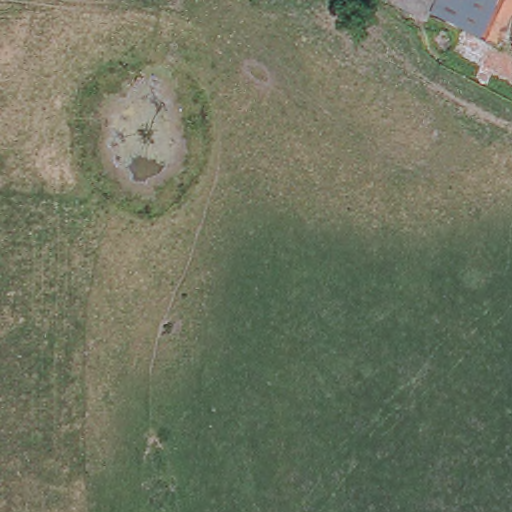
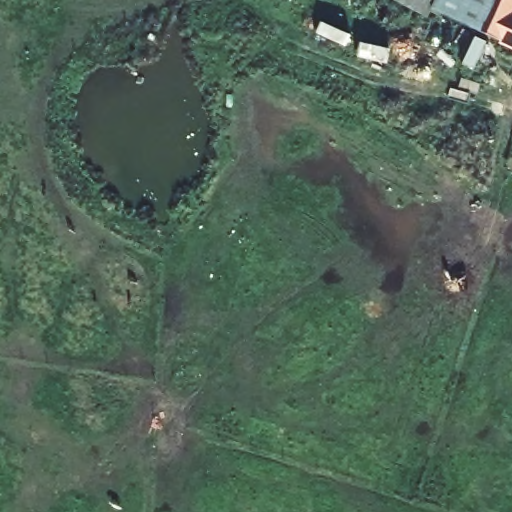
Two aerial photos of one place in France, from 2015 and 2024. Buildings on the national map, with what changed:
unchanged [(503,39),(435,7),(430,18),(397,0),(512,0),(512,44),(509,43),(503,39)]

